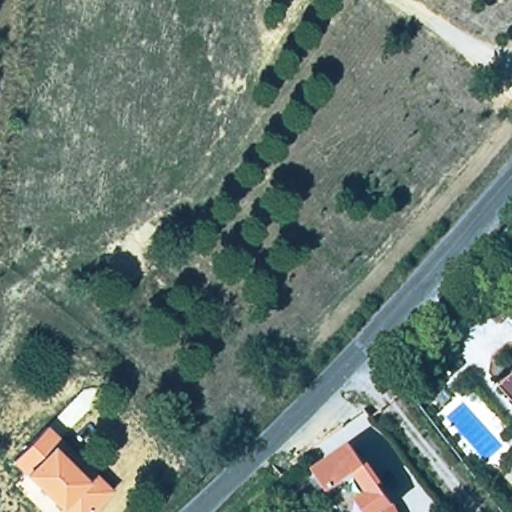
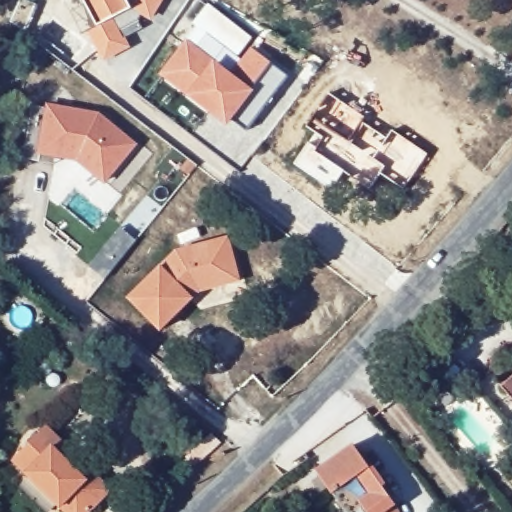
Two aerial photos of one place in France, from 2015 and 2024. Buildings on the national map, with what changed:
new [(18,0),(29,0),(37,4),(24,31),(8,23),(18,0)]
new [(141,28),(125,37),(131,48),(103,63),(84,32),(81,34),(62,1),(61,0),(163,0),(151,22),(142,16),(138,21),(141,28)]
new [(254,90),(234,117),(226,127),(158,74),(186,36),(194,24),(192,22),(208,2),(254,38),(248,45),(250,46),(272,63),(254,90)]
new [(254,90),(272,63),(288,76),(248,128),(234,117),(254,90)]
new [(311,137),(316,131),(308,125),(324,103),(326,105),(328,102),(331,103),(335,97),(364,117),(363,120),(386,136),(391,128),(429,153),(403,190),(379,174),(369,189),(344,172),(314,144),(317,141),(311,137)]
new [(45,109),(46,104),(98,114),(138,145),(104,185),(76,162),(55,158),(54,165),(23,159),(33,106),(45,109)]
new [(309,141),(314,144),(344,172),(331,190),(293,163),(309,141)]
new [(174,250),(228,236),(241,283),(200,294),(194,298),(159,333),(126,299),(161,265),(174,250)]
unchanged [(512,401),(499,388),(512,377),(512,401)]
unchanged [(63,512),(11,461),(46,425),(58,438),(52,444),(88,481),(95,472),(112,490),(91,512),(63,512)]
unchanged [(342,512),(314,470),(351,445),(392,505),(381,512),(342,512)]
unchanged [(512,476),(512,482),(509,479),(512,476)]
unchanged [(395,512),(381,512),(392,505),(395,512)]

